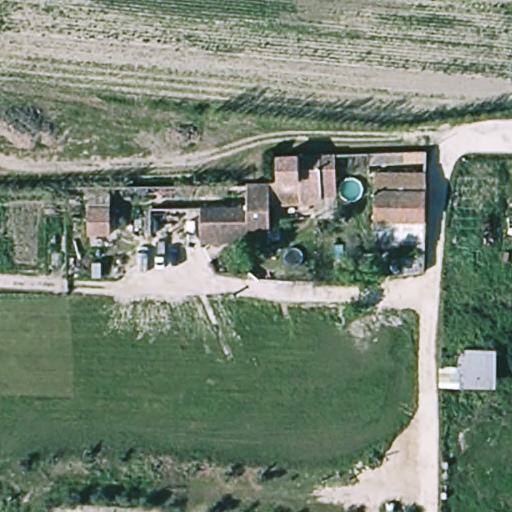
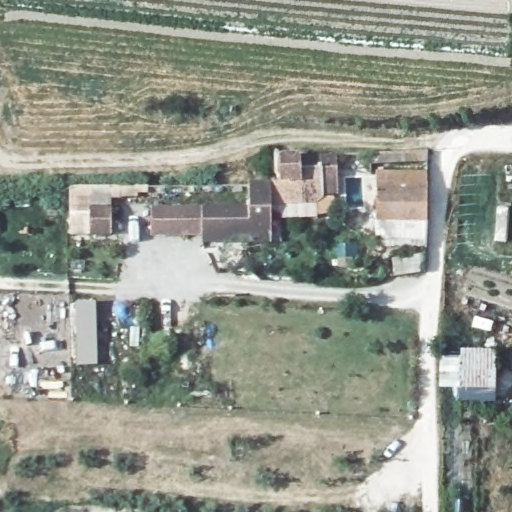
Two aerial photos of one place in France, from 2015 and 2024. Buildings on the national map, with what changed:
unchanged [(348,172),(318,174),(320,185),(332,187),(332,205),(305,207),(302,230),(285,228),(282,212),(260,211),(256,183),(287,180),(285,155),(347,151),(348,172)]
unchanged [(425,229),(375,228),(377,182),(427,182),(425,229)]
unchanged [(112,201),(113,226),(93,227),(92,202),(112,201)]
unchanged [(258,234),(207,234),(208,211),(257,211),(258,234)]
new [(96,302),(98,365),(77,366),(75,302),(96,302)]
unchanged [(497,388),(443,387),(443,354),(495,353),(497,388)]

